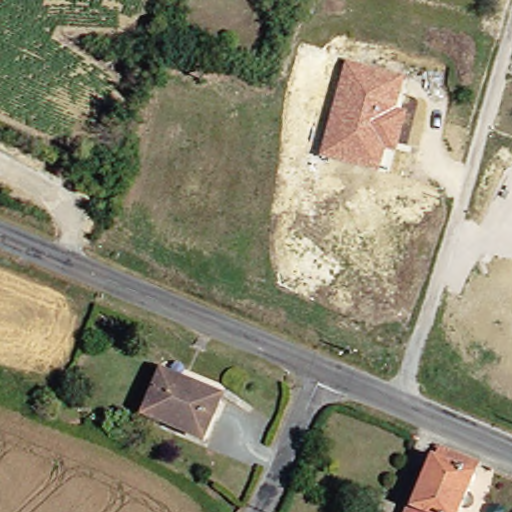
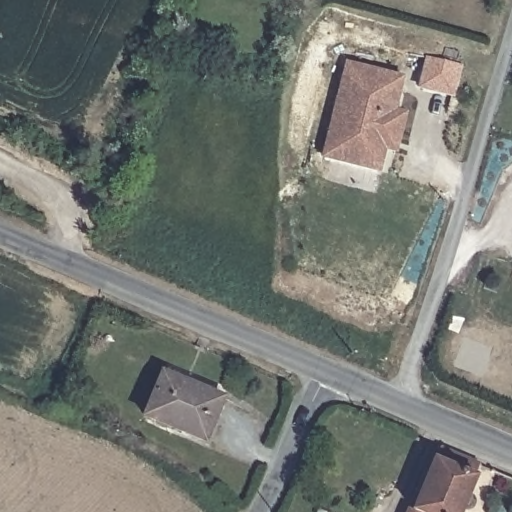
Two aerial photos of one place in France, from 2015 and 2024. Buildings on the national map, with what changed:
new [(455,98),(417,88),(427,54),(464,64),(455,98)]
unchanged [(347,60),(405,75),(397,107),(410,111),(398,152),(387,149),(381,172),(323,157),(347,60)]
unchanged [(219,400),(202,445),(137,420),(155,375),(219,400)]
unchanged [(412,512),(415,505),(411,503),(430,458),(477,479),(463,512),(412,512)]

